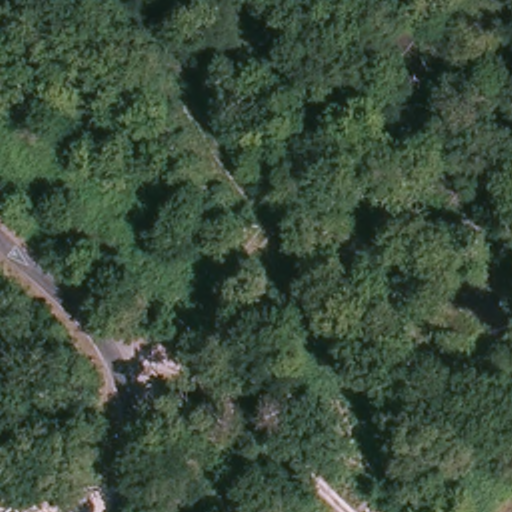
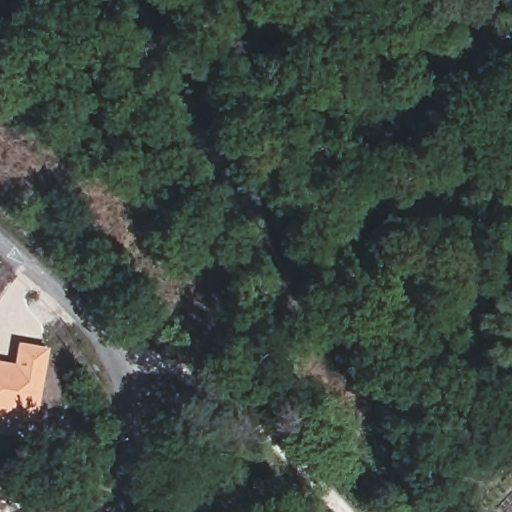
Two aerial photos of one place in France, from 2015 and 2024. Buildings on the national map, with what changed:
new [(17,342),(49,346),(35,420),(0,414),(0,361),(12,362),(17,342)]

